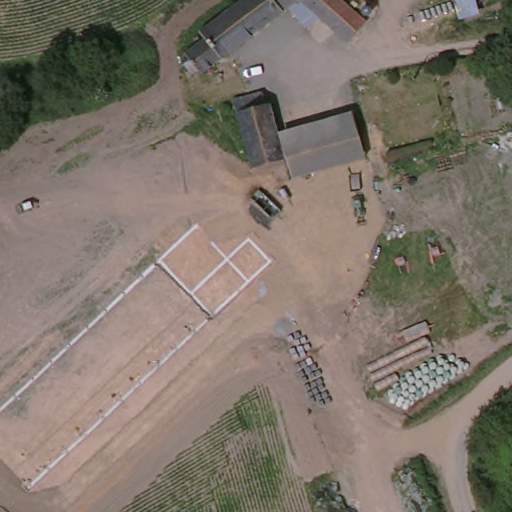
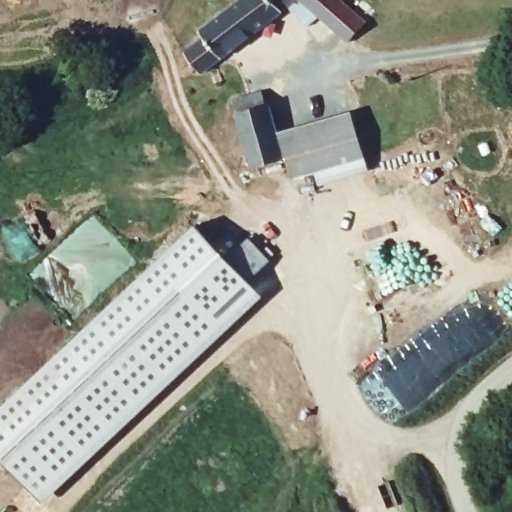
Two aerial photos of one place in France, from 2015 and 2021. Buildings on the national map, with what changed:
unchanged [(193,41),(246,0),(325,0),(358,34),(339,52),(293,5),(196,80),(178,59),(196,45),(193,41)]
unchanged [(252,170),(235,107),(232,104),(262,97),(277,141),(282,164),(252,170)]
unchanged [(352,124),(361,161),(287,179),(282,164),(277,141),(352,124)]
new [(264,248),(286,271),(264,291),(44,496),(0,451),(0,432),(212,235),(243,267),(264,248)]

